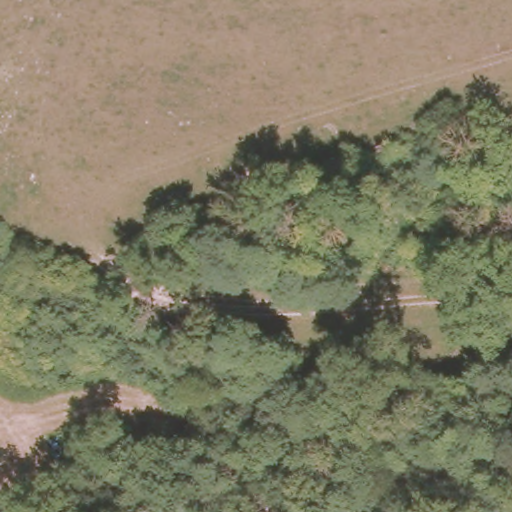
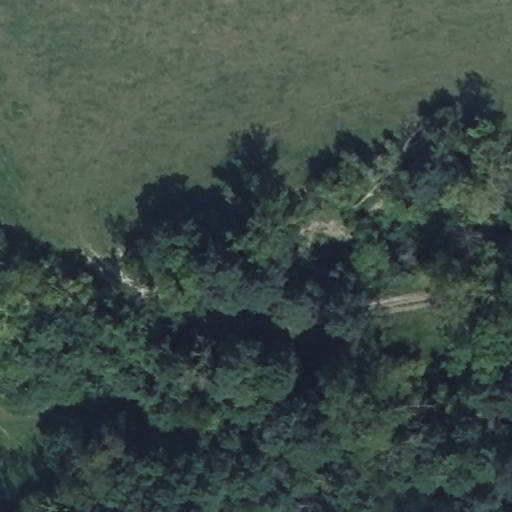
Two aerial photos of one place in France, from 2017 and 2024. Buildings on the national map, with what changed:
unchanged [(511,383),(490,380),(467,377),(470,351),(493,354),(512,356),(512,379),(511,383)]

